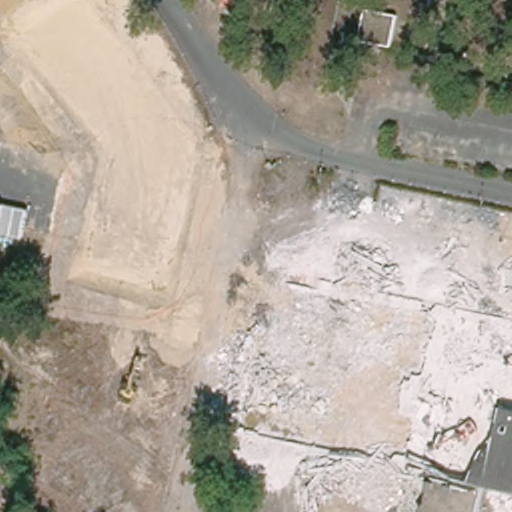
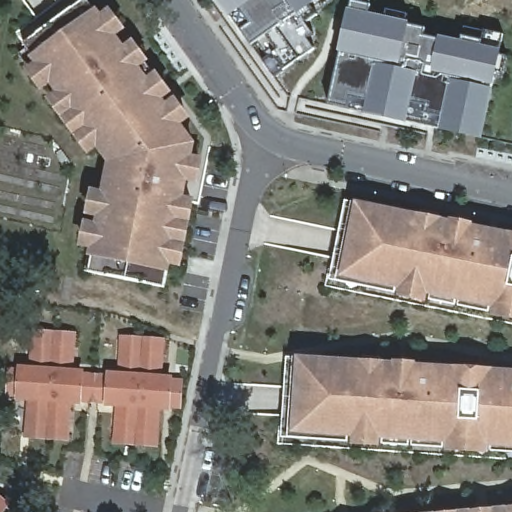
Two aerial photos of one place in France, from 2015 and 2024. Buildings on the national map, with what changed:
demolished [(53,31),(85,38),(79,67),(48,60),(43,84),(10,77),(15,54),(0,51),(0,22),(0,20),(21,24),(26,0),(60,0),(59,2),(53,31)]
new [(90,257),(88,256),(88,249),(78,247),(83,220),(94,222),(95,217),(85,215),(90,189),(101,191),(107,163),(98,149),(89,156),(46,98),(55,91),(50,85),(41,90),(24,68),(33,62),(29,57),(33,54),(26,43),(84,0),(86,0),(94,9),(97,7),(101,13),(111,6),(127,29),(118,36),(124,44),(133,38),(150,61),(147,63),(154,73),(157,70),(173,93),(165,99),(167,102),(176,96),(192,117),(183,124),(195,142),(194,155),(204,157),(199,183),(188,182),(185,197),(196,199),(182,267),(171,265),(170,272),(167,271),(164,285),(88,271),(90,257)]
new [(304,21),(312,32),(306,38),(314,49),(284,68),(274,75),(262,59),(266,56),(266,54),(256,41),(250,46),(240,32),(244,29),(234,15),(230,17),(218,0),(332,0),(317,11),(304,21)]
new [(368,13),(386,16),(387,9),(409,14),(410,22),(409,25),(425,28),(424,36),(439,39),(439,37),(462,40),(462,36),(484,40),(485,30),(501,33),(501,50),(501,55),(506,56),(502,78),(496,77),(495,87),(484,137),(439,129),(406,121),(363,112),(349,108),(330,104),(343,52),(339,52),(348,8),(349,1),(369,4),(368,13)]
demolished [(392,45),(360,39),(366,8),(398,14),(392,45)]
new [(492,316),(492,311),(428,299),(427,302),(399,296),(400,293),(339,280),(330,278),(345,201),(356,201),(512,233),(512,320),(492,316)]
demolished [(512,327),(512,487),(477,479),(470,512),(399,512),(408,465),(227,427),(259,274),(512,327)]
new [(165,375),(173,375),(183,377),(182,409),(171,410),(162,410),(158,445),(112,444),(116,404),(104,405),(81,404),(73,404),(70,439),(25,437),(28,400),(15,400),(7,399),(10,363),(21,364),(28,365),(31,328),(76,331),(76,368),(84,369),(106,371),(117,371),(119,334),(165,336),(165,375)]
new [(488,450),(488,455),(445,452),(445,448),(380,443),(380,447),(350,446),(350,441),(290,437),(281,435),(287,355),(296,355),(512,369),(512,451),(488,450)]
new [(0,493),(12,501),(4,512),(0,512),(0,493)]
new [(512,506),(512,512),(440,512),(512,506)]

